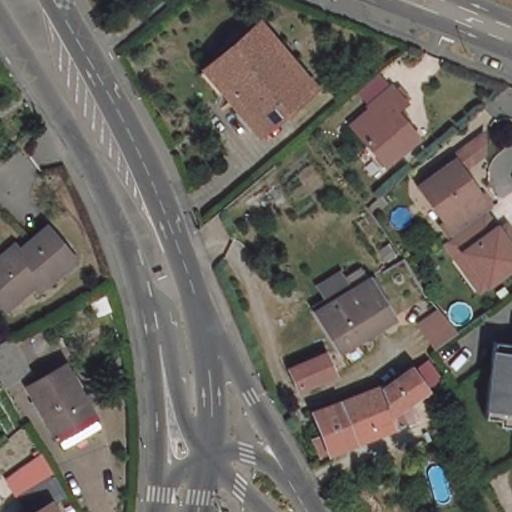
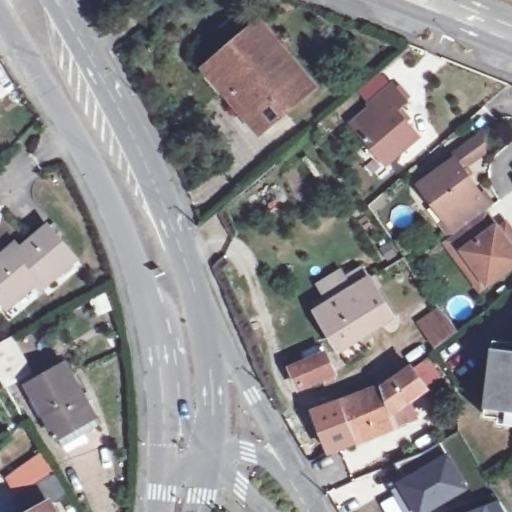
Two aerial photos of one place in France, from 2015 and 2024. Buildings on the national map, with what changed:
unchanged [(261,132),(235,102),(238,100),(227,87),(233,82),(229,78),(221,85),(206,66),(248,31),(260,21),(291,59),(315,86),(261,132)]
unchanged [(370,104),(393,85),(406,101),(396,110),(417,135),(385,164),(351,124),(371,107),(370,104)]
unchanged [(492,207),(455,234),(435,205),(431,207),(418,187),(423,184),(420,180),(483,134),(485,155),(465,169),(480,190),(492,207)]
unchanged [(448,241),(487,212),(500,230),(507,224),(511,228),(512,229),(512,266),(489,282),(481,287),(460,257),(448,241)]
unchanged [(0,300),(0,261),(16,246),(22,252),(50,229),(76,260),(48,284),(40,291),(35,285),(13,303),(7,308),(0,300)]
unchanged [(347,356),(340,344),(334,333),(317,305),(325,300),(329,297),(320,280),(342,267),(352,283),(370,272),(394,310),(359,332),(366,344),(347,356)]
unchanged [(437,346),(430,335),(450,320),(457,331),(437,346)]
unchanged [(497,413),(484,411),(493,340),(512,342),(512,421),(498,419),(497,413)]
unchanged [(5,386),(0,377),(0,345),(7,341),(27,375),(5,386)]
unchanged [(333,371),(299,385),(291,366),(295,365),(325,353),(327,356),(333,371)]
unchanged [(31,401),(36,398),(30,385),(67,363),(102,425),(64,446),(46,414),(40,417),(31,401)]
unchanged [(314,439),(325,434),(315,410),(342,400),(343,400),(364,393),(386,385),(412,366),(428,387),(398,408),(405,422),(398,425),(378,431),(358,439),(331,450),(320,455),(314,439)]
new [(392,482),(447,448),(470,488),(433,509),(426,512),(385,512),(379,502),(397,492),(392,482)]
unchanged [(12,486),(7,480),(43,452),(66,494),(51,503),(57,512),(31,512),(25,502),(12,486)]
new [(508,512),(463,512),(501,497),(508,512)]

